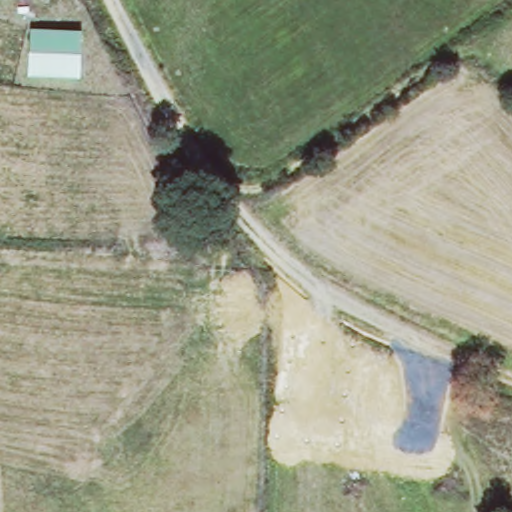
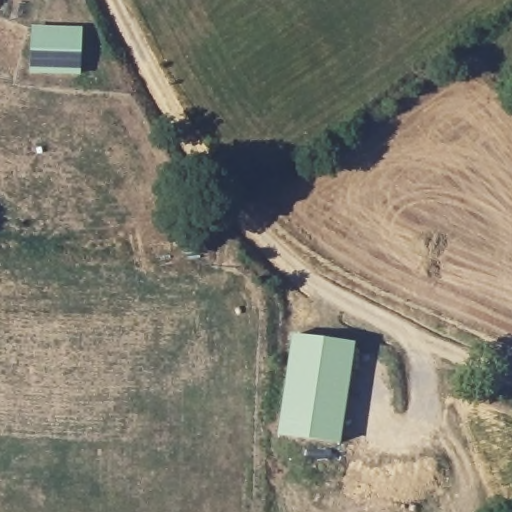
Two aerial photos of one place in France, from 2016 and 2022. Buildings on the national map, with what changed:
new [(84,34),(81,76),(30,74),(33,31),(84,34)]
new [(276,436),(292,335),(355,343),(341,445),(276,436)]

